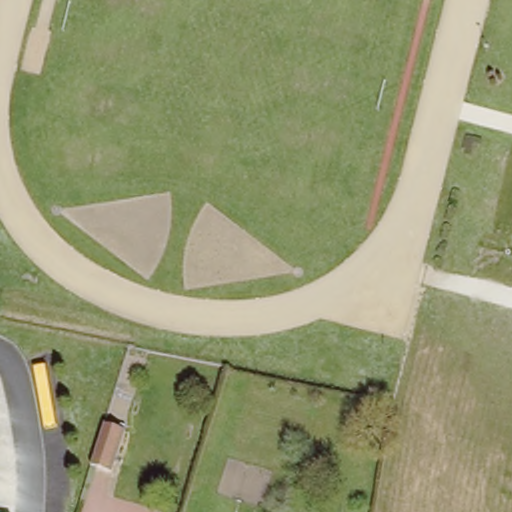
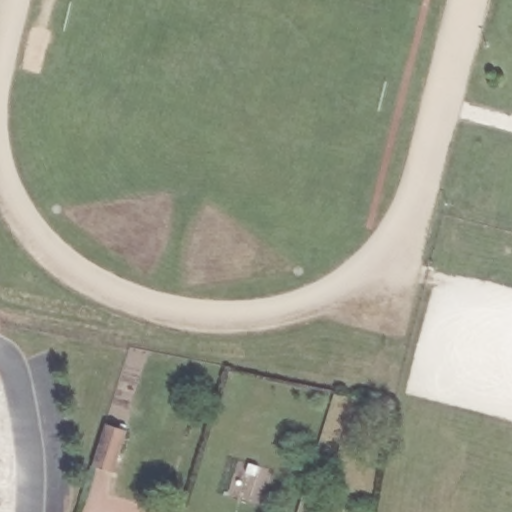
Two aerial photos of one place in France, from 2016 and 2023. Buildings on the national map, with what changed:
unchanged [(127,432),(113,473),(92,466),(105,424),(127,432)]

